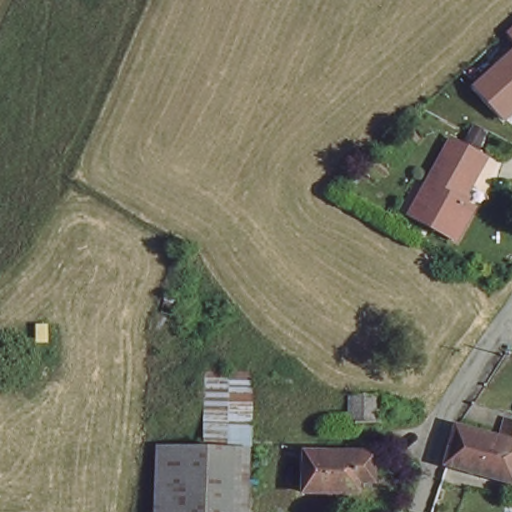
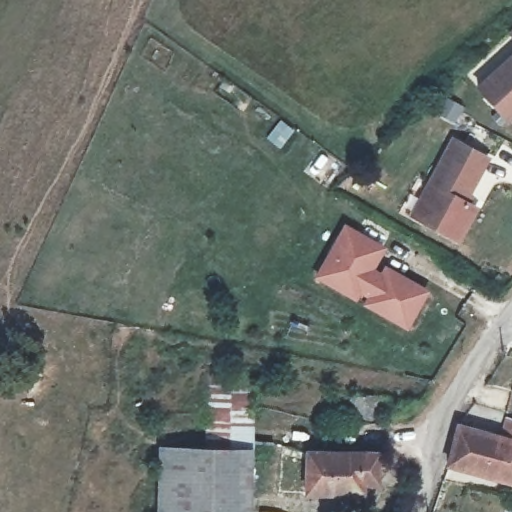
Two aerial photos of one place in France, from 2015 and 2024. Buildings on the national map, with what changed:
unchanged [(507,31),(512,27),(512,39),(507,31)]
unchanged [(508,126),(477,90),(512,56),(512,122),(508,126)]
unchanged [(430,186),(451,142),(485,160),(465,201),(474,208),(458,240),(427,222),(416,216),(430,186)]
new [(360,304),(365,297),(359,293),(355,300),(312,276),(344,222),(387,247),(375,268),(380,271),(385,265),(428,290),(407,330),(360,304)]
unchanged [(207,385),(247,386),(245,433),(206,432),(207,385)]
unchanged [(330,421),(332,416),(359,416),(360,396),(392,397),(392,424),(330,421)]
unchanged [(493,437),(506,441),(510,421),(512,421),(512,482),(447,466),(462,428),(493,437)]
unchanged [(245,433),(245,460),(205,460),(206,432),(245,433)]
unchanged [(302,493),(305,450),(385,452),(382,477),(365,477),(365,495),(302,493)]
unchanged [(183,497),(185,459),(205,460),(245,460),(257,461),(256,512),(182,512),(183,497)]

